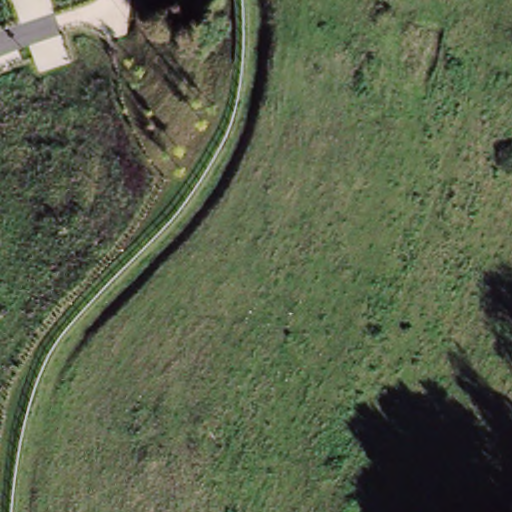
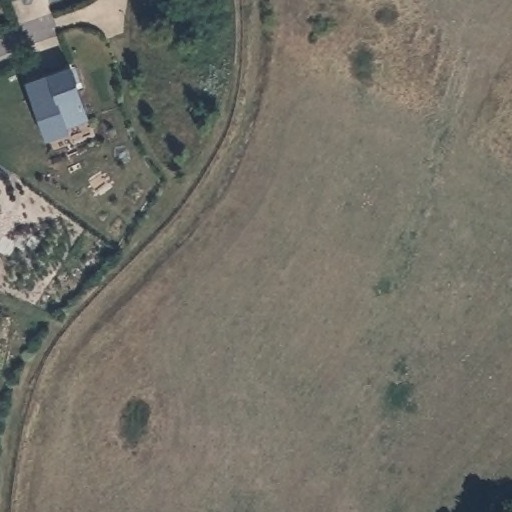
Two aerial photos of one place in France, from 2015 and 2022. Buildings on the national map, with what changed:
new [(70,64),(89,117),(68,124),(69,130),(47,138),(26,80),(70,64)]

